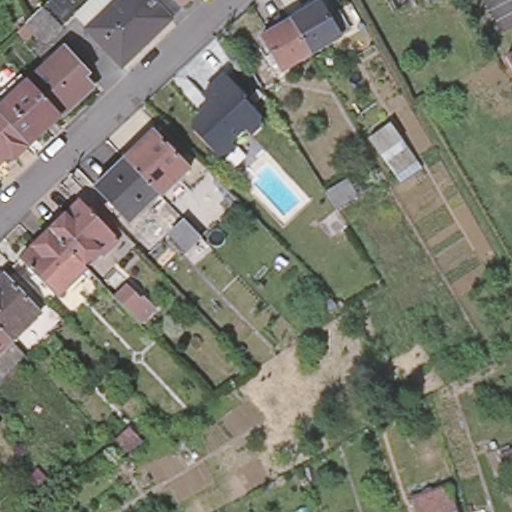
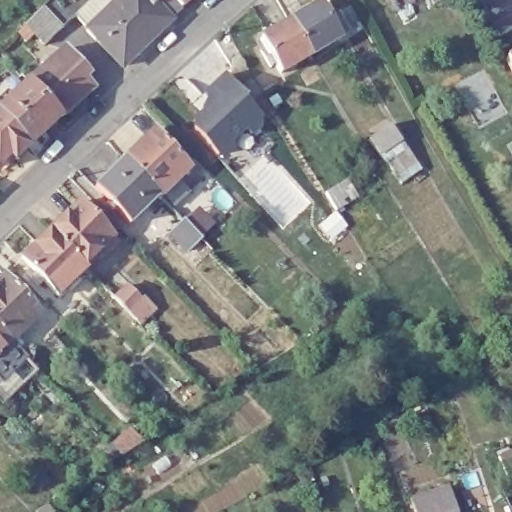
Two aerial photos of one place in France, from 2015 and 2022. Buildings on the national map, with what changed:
unchanged [(43,0),(177,0),(171,5),(175,9),(165,18),(113,62),(80,25),(66,10),(53,23),(43,33),(38,37),(30,31),(19,41),(10,32),(21,21),(26,16),(37,5),(43,0)]
unchanged [(286,17),(315,0),(336,35),(307,52),(286,17)]
unchanged [(452,2),(455,11),(445,17),(440,8),(435,10),(429,0),(456,0),(452,2)]
unchanged [(262,58),(267,55),(256,35),(286,17),(307,52),(276,70),(272,63),(267,66),(262,58)]
unchanged [(60,114),(28,80),(62,46),(85,71),(81,76),(90,86),(60,114)]
unchanged [(512,53),(512,75),(503,58),(512,53)]
unchanged [(190,132),(191,122),(199,115),(198,113),(206,105),(199,97),(222,76),(243,99),(240,101),(256,117),(255,129),(246,136),(240,130),(226,144),(229,153),(213,157),(190,132)]
unchanged [(60,114),(26,146),(0,119),(0,107),(28,80),(60,114)]
unchanged [(26,146),(11,161),(7,157),(0,165),(0,119),(26,146)]
unchanged [(390,123),(420,169),(400,185),(367,138),(390,123)]
unchanged [(149,126),(186,163),(157,192),(155,190),(120,153),(149,126)]
unchanged [(93,192),(97,188),(91,182),(120,153),(155,190),(126,218),(112,204),(108,208),(93,192)]
unchanged [(349,182),(360,199),(338,213),(327,195),(349,182)]
unchanged [(90,210),(96,204),(103,212),(97,218),(110,231),(80,261),(45,225),(76,197),(90,210)]
unchanged [(200,235),(185,248),(170,235),(185,221),(200,235)]
unchanged [(82,264),(55,290),(18,253),(45,225),(80,261),(82,264)]
unchanged [(20,290),(25,286),(41,302),(35,307),(40,312),(10,341),(0,330),(0,278),(4,274),(20,290)]
unchanged [(128,287),(143,303),(132,314),(115,298),(128,287)]
unchanged [(0,351),(0,330),(10,341),(0,351)]
unchanged [(112,444),(128,429),(143,443),(137,446),(123,455),(112,444)]
unchanged [(445,477),(452,503),(465,501),(468,512),(413,512),(405,492),(445,477)]

